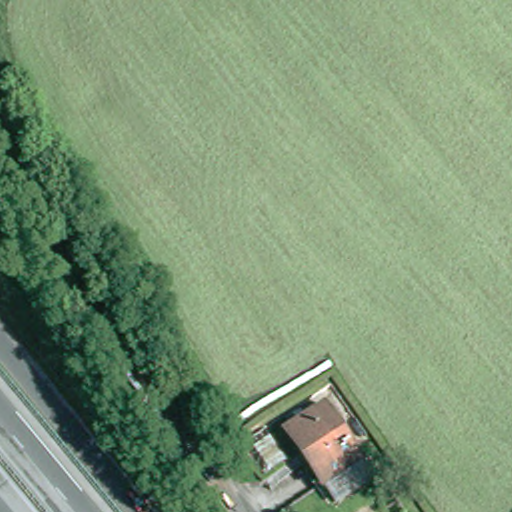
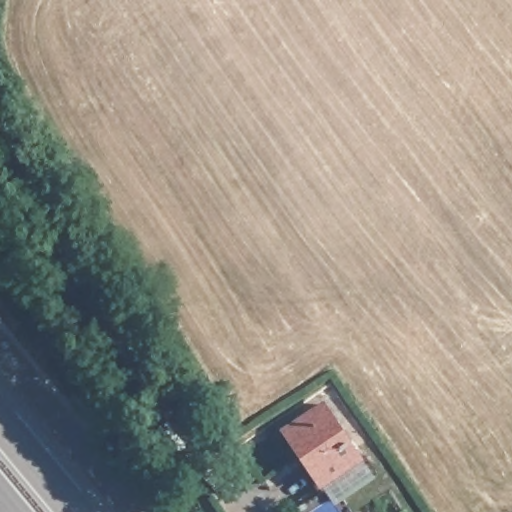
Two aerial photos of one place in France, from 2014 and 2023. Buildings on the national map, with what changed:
unchanged [(333,408),(369,462),(329,488),(292,435),(333,408)]

